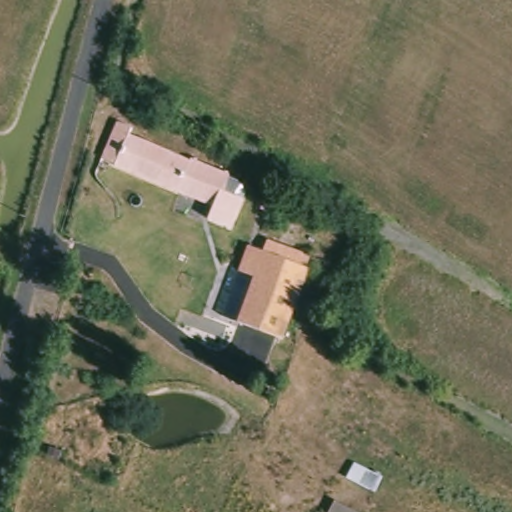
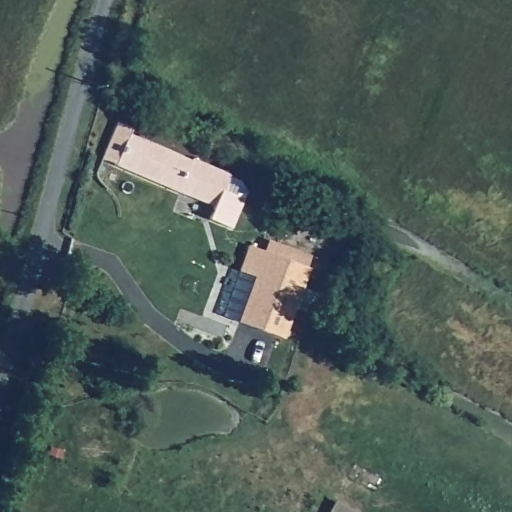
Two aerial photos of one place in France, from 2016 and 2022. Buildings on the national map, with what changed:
unchanged [(115,168),(102,163),(117,124),(136,130),(133,136),(196,164),(197,160),(232,174),(223,195),(243,204),(231,233),(209,224),(214,211),(115,169),(115,168)]
unchanged [(284,189),(276,203),(261,194),(269,180),(284,189)]
unchanged [(249,246),(265,252),(268,240),(313,257),(302,287),(322,293),(313,315),(295,308),(282,338),(237,323),(254,278),(237,271),(249,246)]

